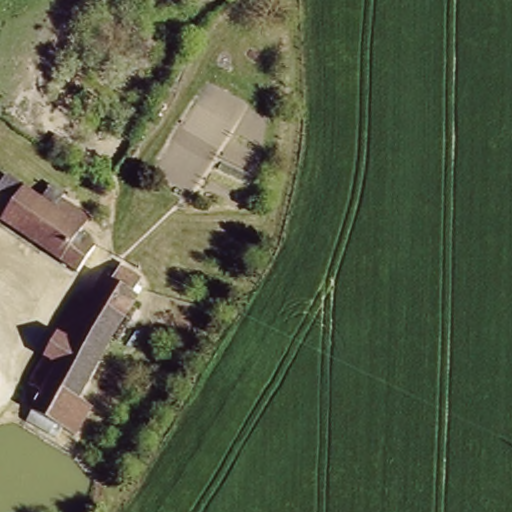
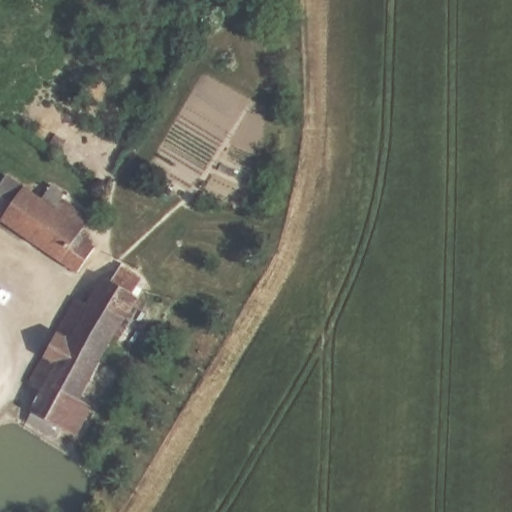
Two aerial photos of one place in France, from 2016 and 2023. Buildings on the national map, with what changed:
unchanged [(40,199),(49,185),(61,192),(58,196),(88,216),(76,234),(93,245),(76,270),(0,219),(0,181),(4,175),(40,199)]
unchanged [(41,383),(29,377),(73,292),(86,298),(101,268),(110,273),(117,261),(138,273),(131,286),(135,287),(76,391),(88,397),(73,427),(53,417),(51,422),(49,426),(26,412),(30,405),(41,383)]

